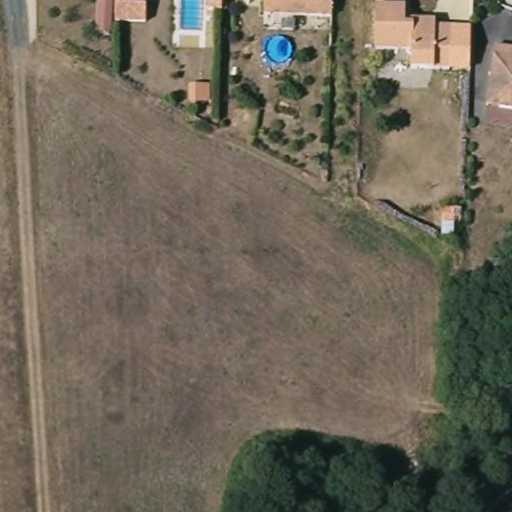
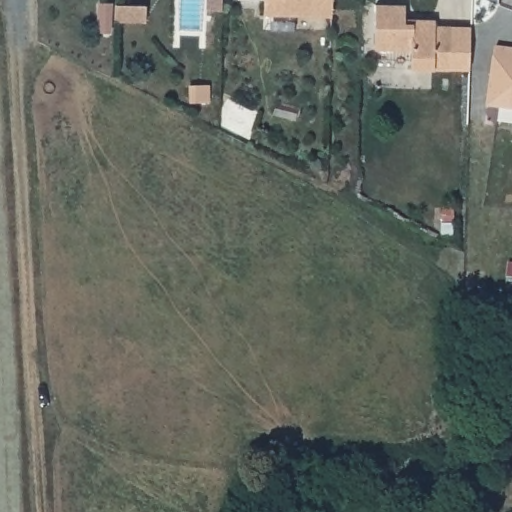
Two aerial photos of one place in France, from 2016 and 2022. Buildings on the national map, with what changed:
unchanged [(149,16),(119,14),(119,0),(150,0),(149,16)]
unchanged [(263,0),(329,0),(328,22),(262,18),(263,0)]
unchanged [(405,4),(405,18),(435,20),(435,28),(452,28),(449,74),(410,71),(412,53),(372,50),(375,2),(405,4)]
unchanged [(489,92),(498,45),(512,48),(512,112),(500,110),(486,107),(489,92)]

